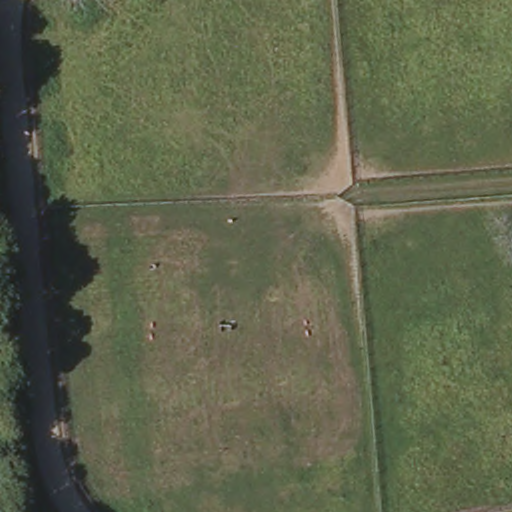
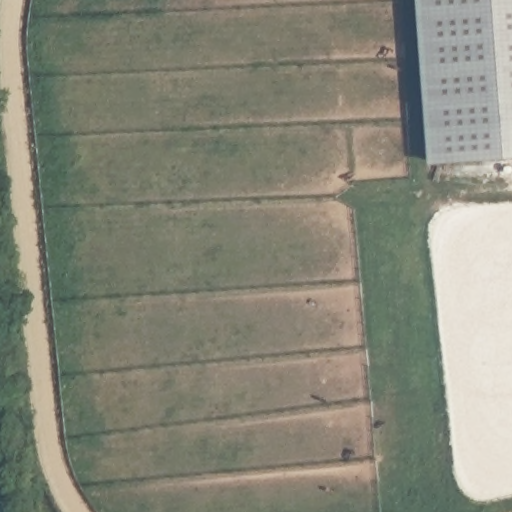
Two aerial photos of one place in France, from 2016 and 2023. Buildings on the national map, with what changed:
new [(420,0),(512,0),(512,170),(428,172),(420,0)]

